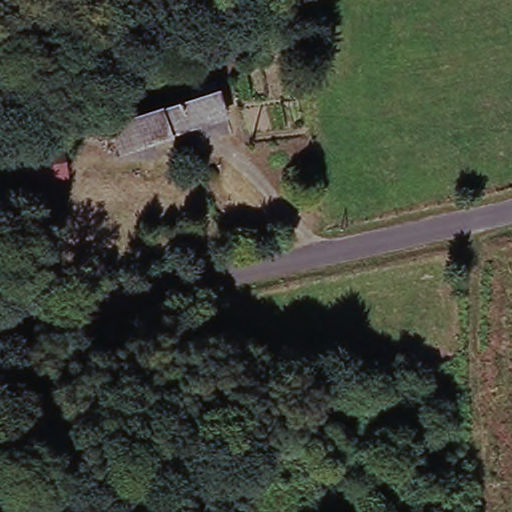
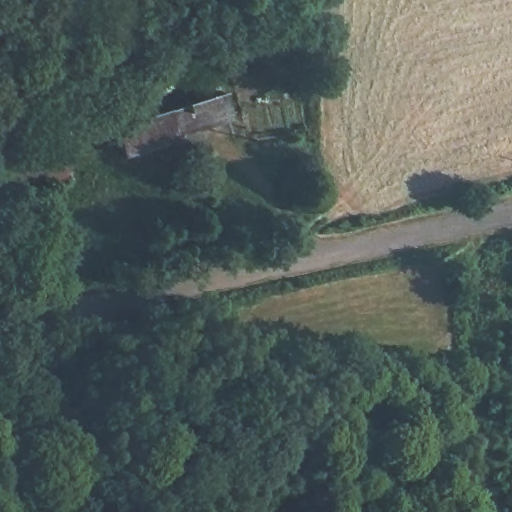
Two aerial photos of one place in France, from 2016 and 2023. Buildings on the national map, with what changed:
unchanged [(228,99),(232,127),(132,149),(127,122),(228,99)]
unchanged [(61,157),(59,187),(10,191),(11,162),(61,157)]

